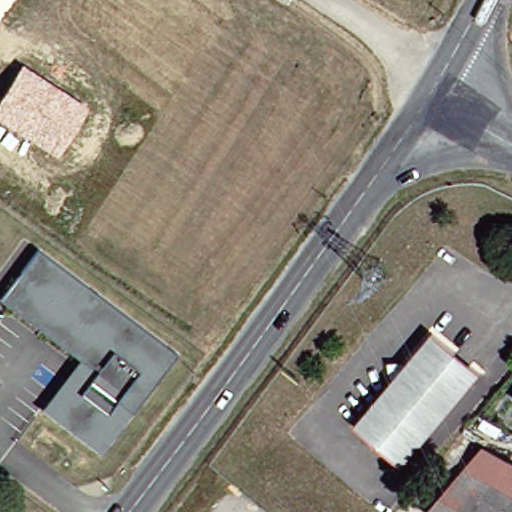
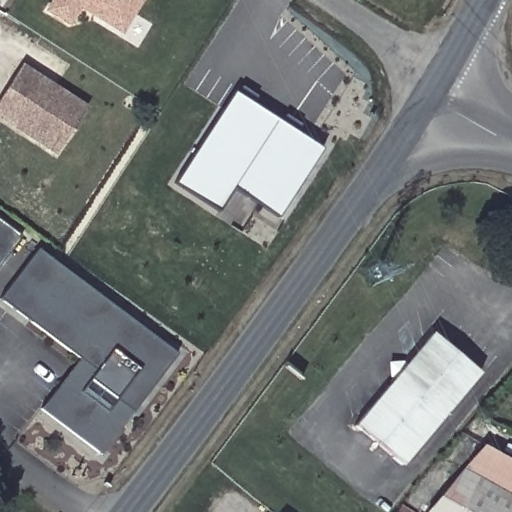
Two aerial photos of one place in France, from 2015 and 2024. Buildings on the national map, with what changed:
new [(121,36),(80,9),(68,29),(44,12),(51,0),(144,0),(121,36)]
unchanged [(90,107),(58,156),(0,119),(0,100),(22,63),(90,107)]
new [(261,102),(282,116),(328,146),(283,215),(239,186),(224,210),(179,181),(240,88),(261,102)]
new [(0,261),(0,221),(20,235),(0,261)]
unchanged [(49,414),(40,408),(79,357),(32,323),(0,299),(0,295),(36,247),(71,273),(176,351),(132,411),(101,453),(93,447),(49,414)]
unchanged [(395,462),(351,424),(429,331),(473,369),(395,462)]
unchanged [(511,397),(512,396),(512,398),(511,397)]
unchanged [(442,512),(441,512),(469,462),(512,486),(512,512),(442,512)]

